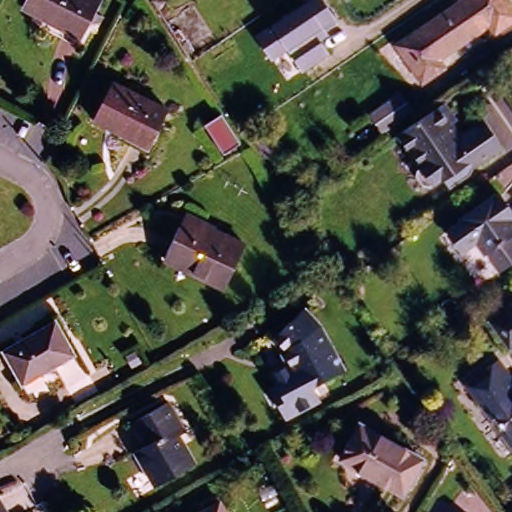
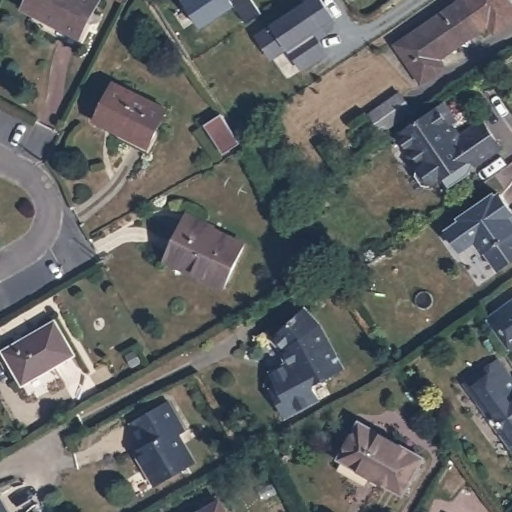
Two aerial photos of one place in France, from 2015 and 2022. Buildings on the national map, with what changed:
unchanged [(96,0),(76,36),(20,7),(24,0),(96,0)]
new [(245,21),(233,4),(199,27),(181,0),(252,0),(259,11),(245,21)]
unchanged [(324,0),(338,21),(326,30),(329,34),(321,40),(330,54),(301,72),(288,51),(273,61),(258,34),(311,0),(324,0)]
unchanged [(505,0),(512,10),(512,19),(493,32),(487,24),(437,58),(442,66),(419,82),(394,44),(459,0),(505,0)]
unchanged [(113,81),(163,107),(145,142),(118,129),(116,131),(93,119),(113,81)]
unchanged [(397,92),(409,109),(381,131),(367,113),(397,92)]
unchanged [(444,178),(436,183),(434,181),(430,184),(424,183),(417,172),(419,166),(423,163),(425,156),(418,147),(414,149),(400,129),(434,106),(444,99),(457,117),(451,121),(460,135),(484,119),(503,145),(476,164),(468,175),(449,186),(444,178)]
unchanged [(218,114),(238,141),(221,151),(203,124),(218,114)]
unchanged [(260,130),(274,150),(265,156),(251,136),(260,130)]
unchanged [(486,248),(484,249),(474,237),(459,246),(446,226),(460,216),(459,214),(493,190),(494,192),(499,190),(512,208),(512,210),(509,212),(512,217),(512,279),(506,283),(494,268),(498,266),(486,248)]
unchanged [(211,234),(241,248),(221,291),(162,263),(181,224),(184,216),(201,224),(212,229),(211,234)]
unchanged [(512,297),(512,344),(507,347),(484,317),(512,297)]
unchanged [(319,322),(345,369),(313,387),(320,400),(288,417),(273,390),(279,386),(273,373),(289,364),(283,353),(288,350),(288,348),(276,336),(304,307),(319,322)]
unchanged [(53,320),(71,353),(20,381),(1,349),(53,320)]
unchanged [(131,347),(138,357),(128,362),(122,352),(131,347)]
unchanged [(497,437),(493,436),(485,425),(486,420),(474,403),(461,385),(493,362),(506,379),(512,374),(512,458),(497,437)]
unchanged [(169,398),(186,429),(177,434),(183,443),(185,441),(195,460),(155,484),(134,449),(144,442),(132,420),(169,398)]
unchanged [(358,429),(419,462),(400,495),(339,461),(358,429)]
unchanged [(218,500),(225,512),(198,512),(218,500)]
unchanged [(0,504),(5,512),(0,512),(0,504)]

